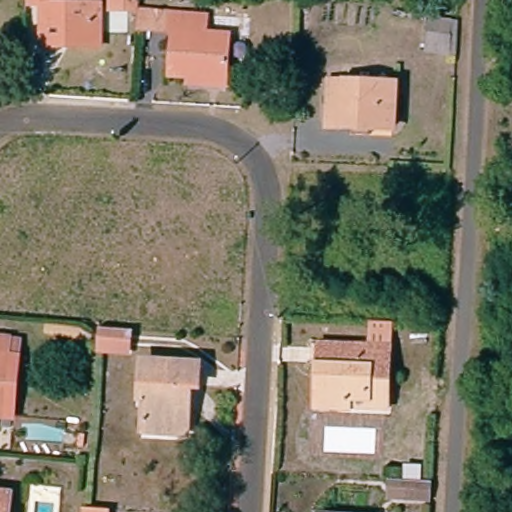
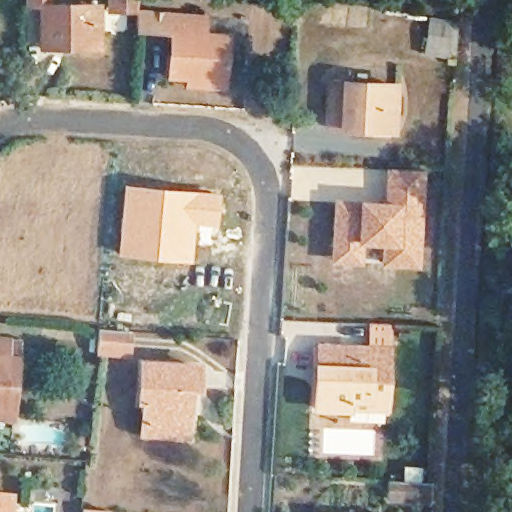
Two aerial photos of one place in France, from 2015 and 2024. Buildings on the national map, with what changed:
unchanged [(35,49),(37,5),(22,4),(22,0),(47,0),(46,4),(94,5),(93,45),(92,51),(51,49),(35,49)]
unchanged [(122,11),(123,0),(137,0),(135,12),(122,11)]
unchanged [(424,56),(427,16),(457,17),(453,57),(424,56)]
unchanged [(186,93),(186,85),(167,83),(171,40),(166,40),(134,36),(136,17),(168,20),(205,22),(205,39),(227,41),(225,88),(224,95),(186,93)]
unchanged [(325,130),(327,83),(395,85),(394,133),(325,130)]
new [(383,200),(385,168),(424,170),(419,269),(381,266),(383,246),(363,245),(361,265),(329,263),(334,199),(383,200)]
new [(122,184),(218,191),(214,227),(195,225),(190,264),(115,256),(122,184)]
unchanged [(350,411),(313,409),(314,388),(315,367),(308,366),(310,346),(370,348),(371,323),(391,325),(387,403),(386,412),(350,411)]
unchanged [(95,330),(129,333),(127,358),(93,356),(95,330)]
unchanged [(13,357),(1,357),(0,369),(0,340),(14,341),(13,357)]
new [(1,357),(13,357),(14,341),(21,341),(15,420),(0,419),(0,369),(1,357)]
unchanged [(196,391),(188,391),(186,436),(140,433),(142,402),(137,402),(139,363),(197,366),(196,391)]
unchanged [(429,504),(401,502),(402,481),(430,482),(429,504)]
unchanged [(9,502),(8,512),(0,512),(0,502),(9,502)]
unchanged [(102,512),(81,512),(81,510),(102,512)]

